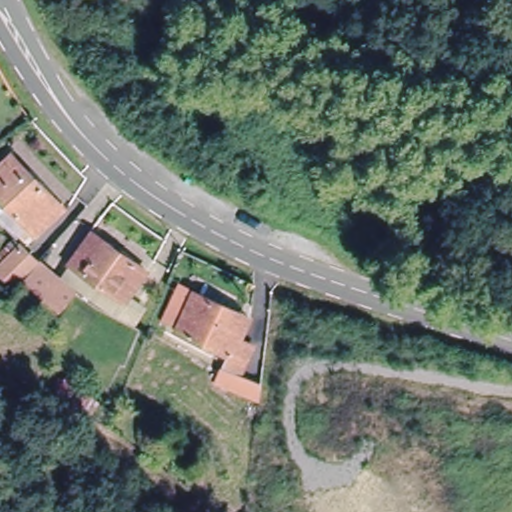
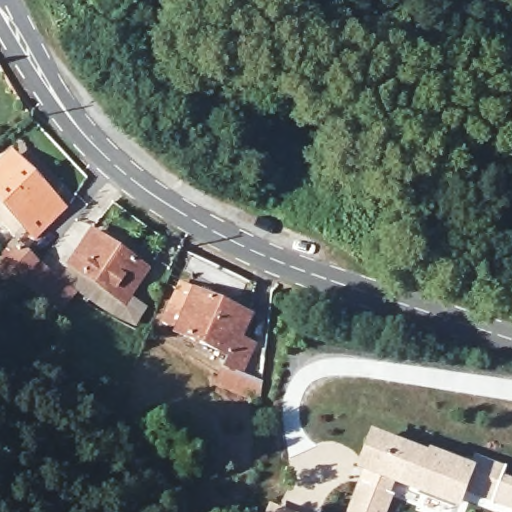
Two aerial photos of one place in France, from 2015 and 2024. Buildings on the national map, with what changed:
unchanged [(0,162),(16,145),(71,203),(42,230),(29,218),(21,225),(0,205),(0,162)]
unchanged [(67,268),(75,257),(97,226),(152,263),(134,292),(122,307),(67,268)]
unchanged [(17,277),(0,259),(0,250),(17,233),(40,254),(17,277)]
unchanged [(66,303),(30,273),(46,257),(80,285),(66,303)]
unchanged [(174,329),(193,289),(242,310),(249,314),(242,327),(239,334),(255,343),(242,369),(226,362),(229,354),(174,329)]
unchanged [(260,395),(219,378),(224,364),(242,372),(262,377),(260,395)]
new [(357,484),(369,488),(373,479),(356,471),(372,433),(427,454),(428,452),(471,467),(474,458),(504,469),(490,504),(466,494),(460,512),(395,486),(391,494),(395,497),(389,512),(347,512),(357,484)]
new [(271,504),(291,512),(267,512),(271,504)]

